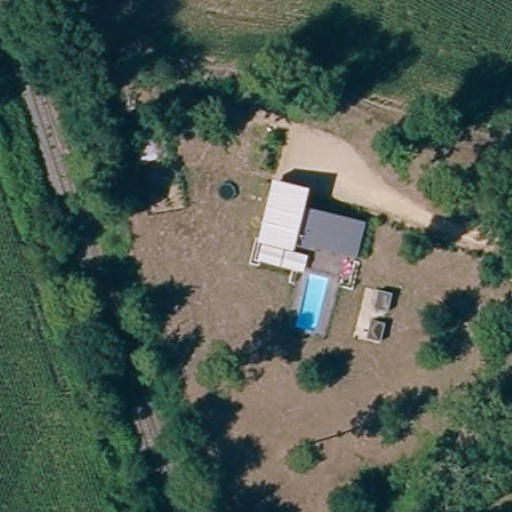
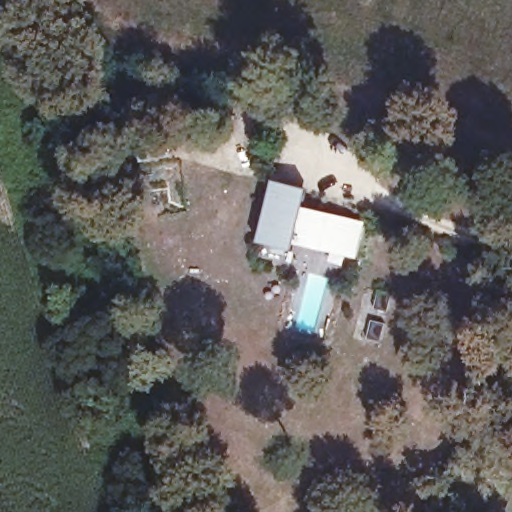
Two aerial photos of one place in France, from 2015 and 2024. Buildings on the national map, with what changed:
unchanged [(308,192),(303,214),(361,227),(356,249),(294,235),(297,220),(267,212),(273,184),(308,192)]
unchanged [(267,212),(297,220),(294,235),(356,249),(347,285),(254,264),(267,212)]

